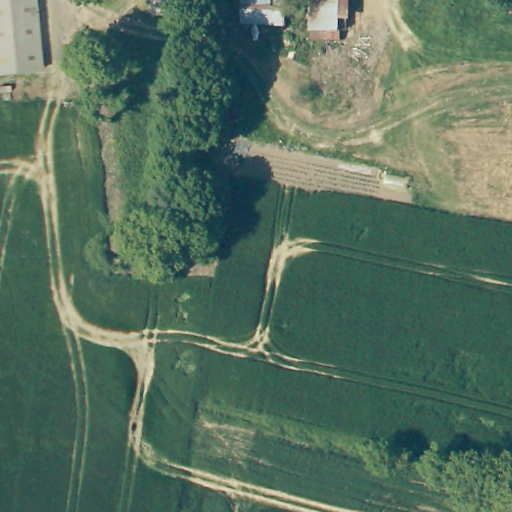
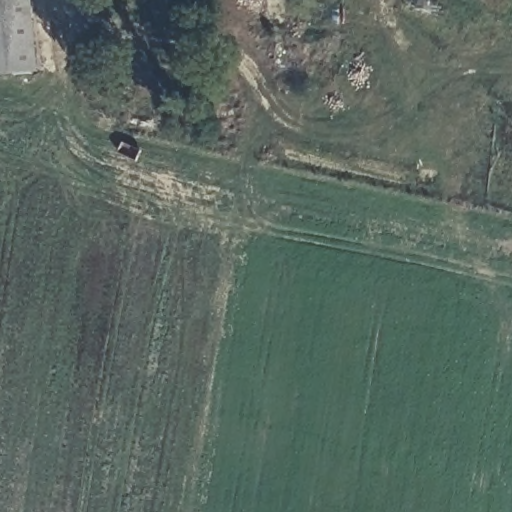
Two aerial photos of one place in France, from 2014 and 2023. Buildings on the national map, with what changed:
unchanged [(0,70),(0,0),(42,0),(47,65),(0,70)]
unchanged [(243,21),(244,0),(286,0),(286,23),(243,21)]
unchanged [(304,27),(303,22),(304,0),(337,0),(335,28),(304,27)]

